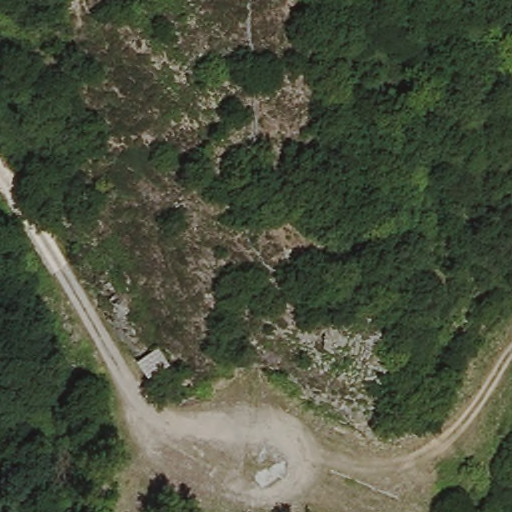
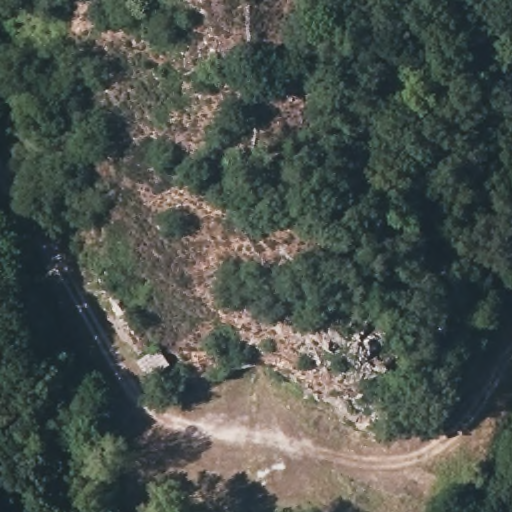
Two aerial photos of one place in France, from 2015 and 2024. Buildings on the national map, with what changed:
unchanged [(152,384),(140,365),(160,349),(172,371),(152,384)]

